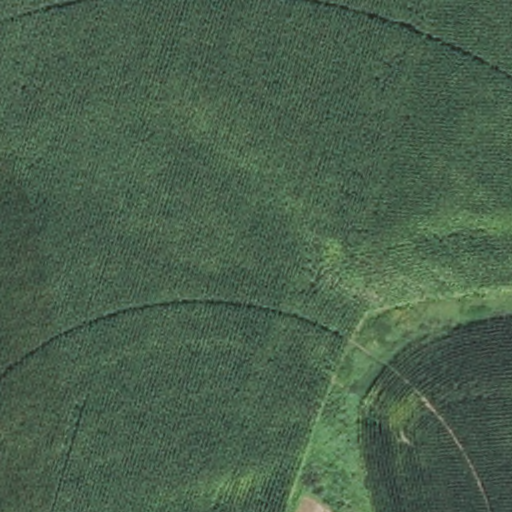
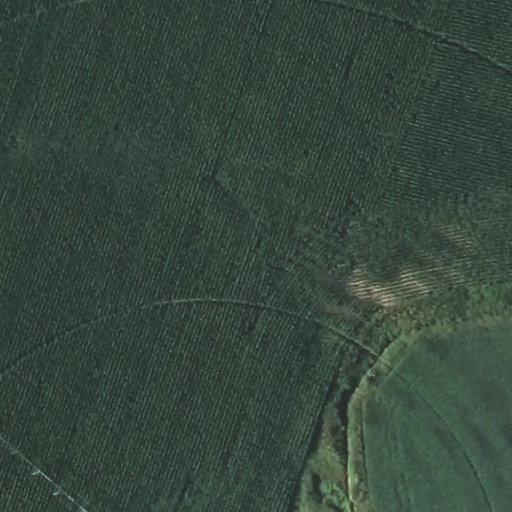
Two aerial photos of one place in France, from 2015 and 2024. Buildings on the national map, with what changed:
[]

